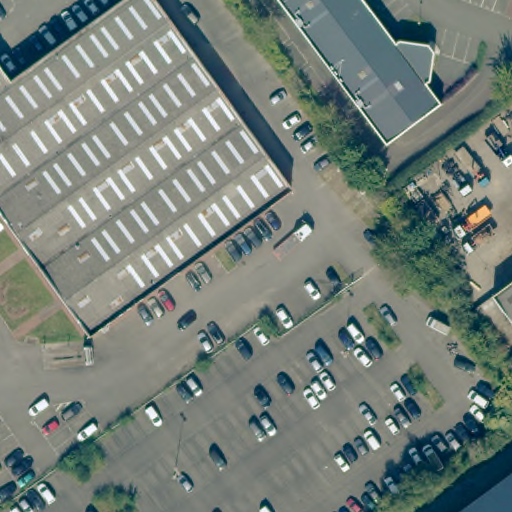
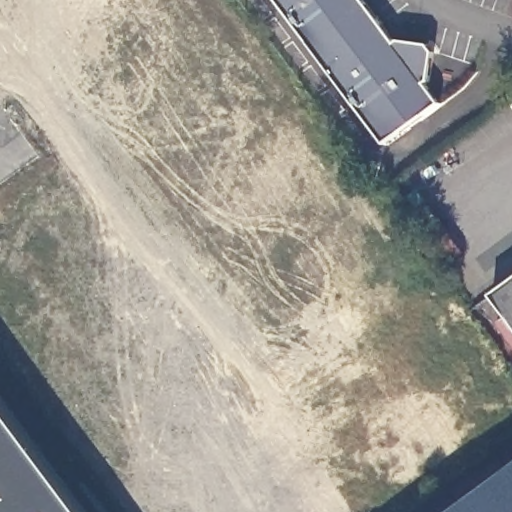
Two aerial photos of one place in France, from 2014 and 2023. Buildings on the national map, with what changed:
demolished [(9,76),(113,0),(155,0),(289,184),(89,329),(0,207),(0,64),(9,76)]
unchanged [(275,0),(360,0),(396,47),(431,51),(427,90),(441,108),(386,149),(275,0)]
unchanged [(321,132),(335,153),(314,168),(299,147),(321,132)]
unchanged [(512,323),(493,297),(512,282),(512,323)]
new [(84,512),(0,512),(0,399),(84,512)]
unchanged [(512,512),(454,512),(512,468),(512,512)]

